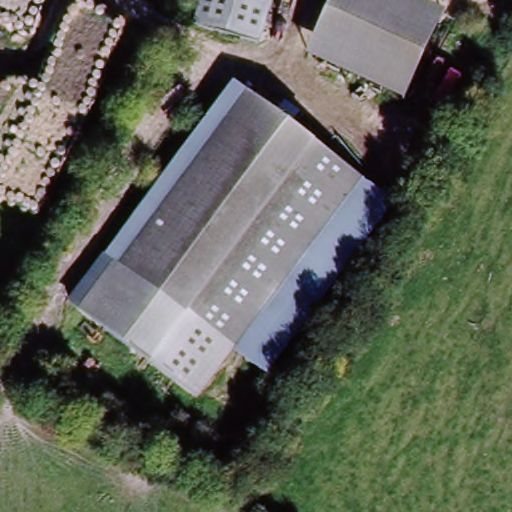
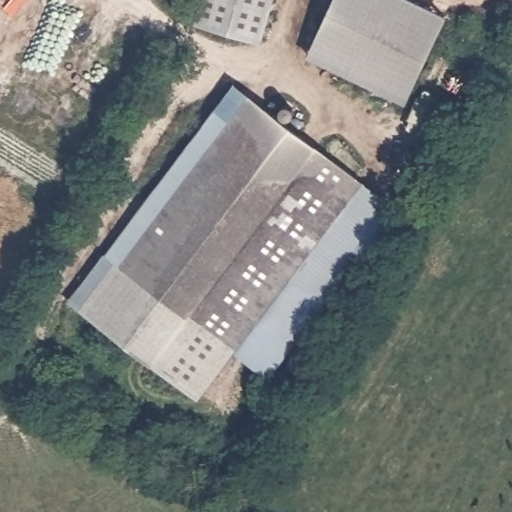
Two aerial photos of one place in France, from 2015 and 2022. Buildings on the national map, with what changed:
unchanged [(193,28),(201,0),(275,0),(261,50),(193,28)]
unchanged [(406,0),(442,17),(403,102),(301,59),(327,0),(406,0)]
unchanged [(271,383),(235,357),(106,258),(235,86),(399,211),(271,383)]
unchanged [(235,357),(196,403),(67,309),(106,258),(235,357)]

